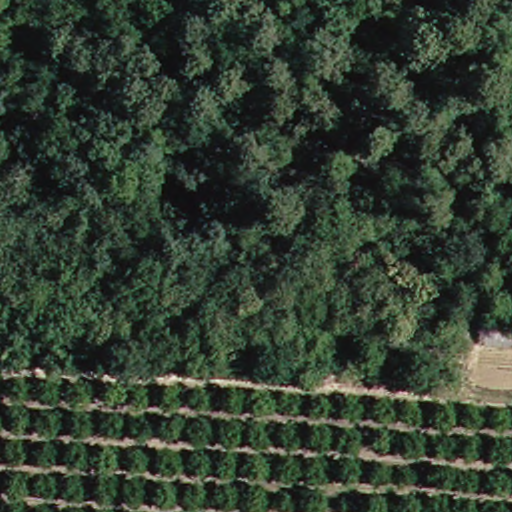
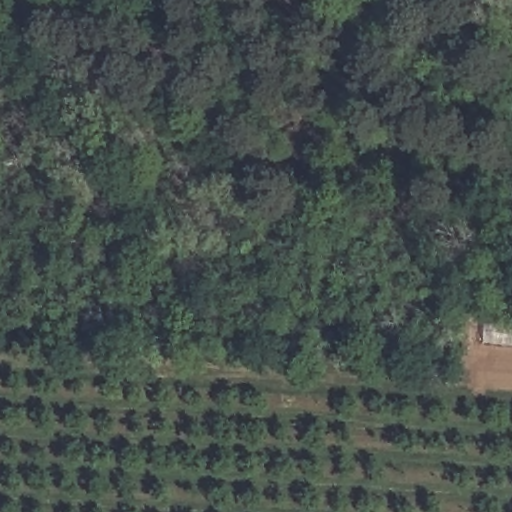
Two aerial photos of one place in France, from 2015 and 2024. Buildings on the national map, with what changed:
[]

